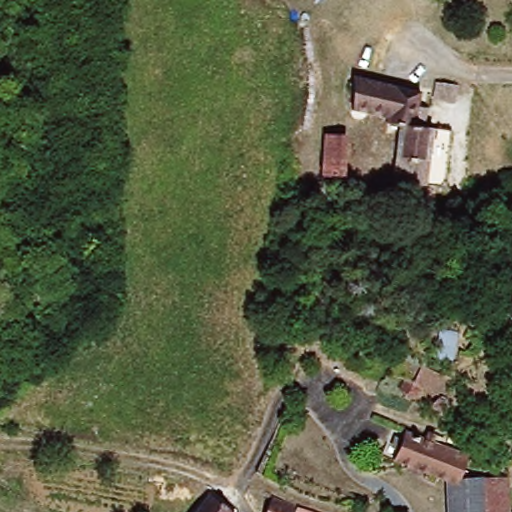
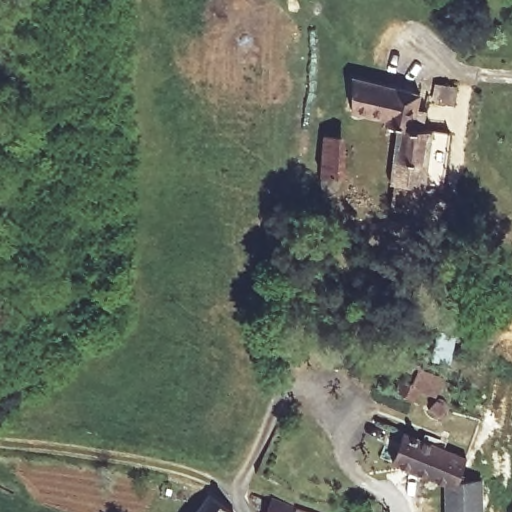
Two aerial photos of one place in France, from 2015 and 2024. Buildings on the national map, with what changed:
unchanged [(348,108),(351,84),(427,94),(424,122),(435,124),(428,181),(395,178),(397,133),(382,130),(382,112),(348,108)]
unchanged [(457,86),(456,100),(445,100),(448,84),(457,86)]
unchanged [(337,134),(336,180),(332,187),(326,187),(320,184),(320,131),(322,131),(337,134)]
unchanged [(403,361),(412,363),(418,344),(430,348),(423,368),(417,366),(412,381),(405,378),(400,376),(403,361)]
unchanged [(428,390),(439,377),(442,380),(445,385),(444,389),(440,392),(437,393),(432,392),(428,390)]
unchanged [(391,462),(401,434),(455,455),(446,483),(391,462)]
unchanged [(482,486),(483,512),(448,512),(446,483),(482,481),(482,486)]
unchanged [(512,485),(512,496),(512,512),(483,512),(482,486),(512,485)]
unchanged [(272,496),(302,507),(301,509),(308,512),(266,512),(272,496)]
unchanged [(203,498),(233,511),(233,512),(195,512),(203,498)]

